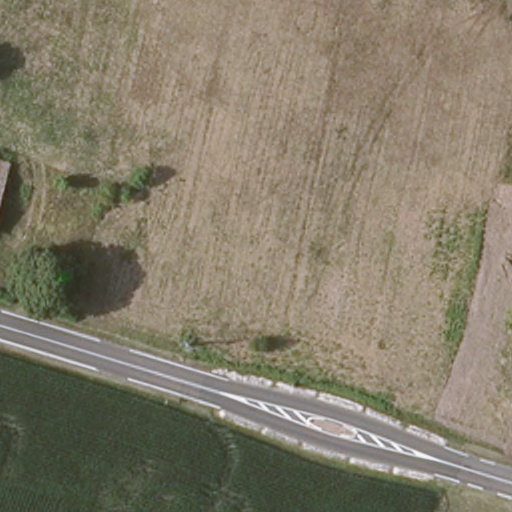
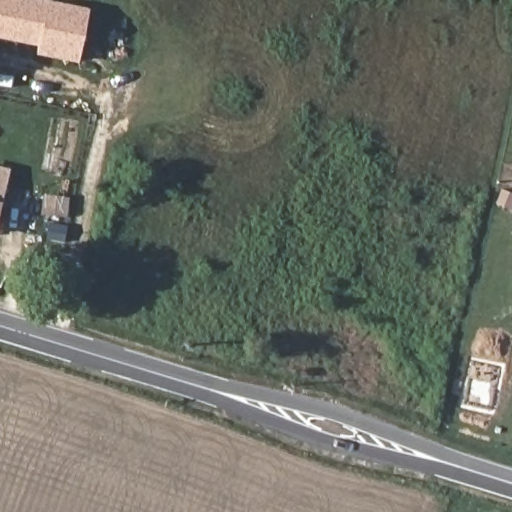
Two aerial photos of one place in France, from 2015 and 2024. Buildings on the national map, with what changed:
new [(0,38),(0,0),(44,0),(90,9),(80,63),(35,54),(39,45),(0,38)]
unchanged [(8,183),(0,224),(0,181),(8,183)]

